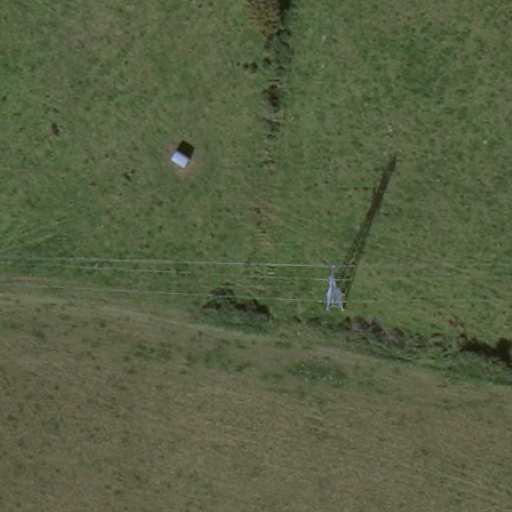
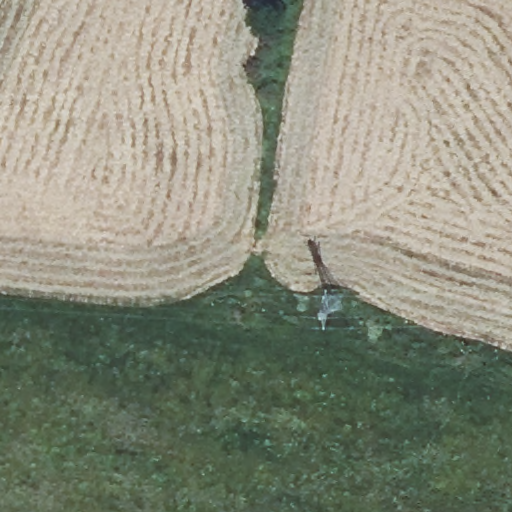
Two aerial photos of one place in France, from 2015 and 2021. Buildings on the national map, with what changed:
[]

